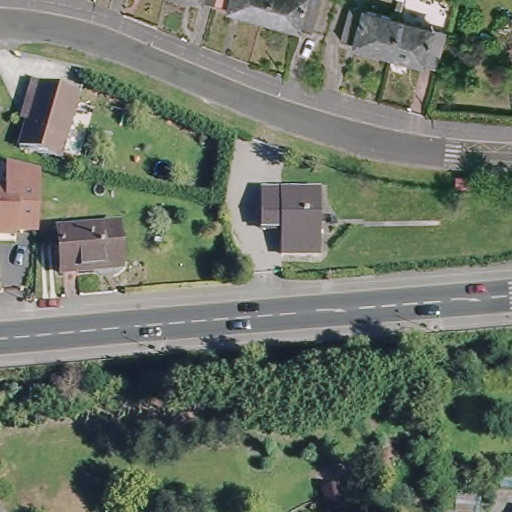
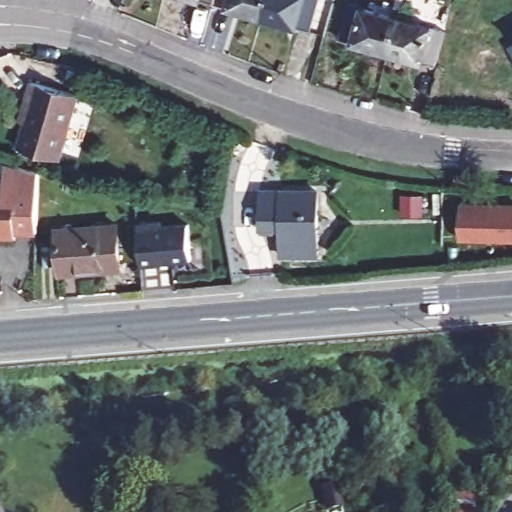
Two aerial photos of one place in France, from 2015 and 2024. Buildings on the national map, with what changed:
unchanged [(205,0),(224,0),(223,5),(205,0)]
unchanged [(223,5),(224,0),(277,0),(275,6),(272,19),(223,5)]
unchanged [(272,19),(275,6),(277,0),(328,0),(319,32),(272,19)]
unchanged [(391,47),(345,33),(353,1),(400,14),(393,42),(391,47)]
unchanged [(391,47),(393,42),(400,14),(450,28),(441,62),(391,47)]
unchanged [(79,94),(65,159),(22,148),(28,123),(22,122),(27,99),(31,82),(79,94)]
unchanged [(18,234),(18,237),(0,239),(0,194),(5,193),(3,167),(36,175),(40,232),(18,234)]
unchanged [(312,238),(314,251),(286,254),(281,191),(317,188),(320,237),(312,238)]
new [(512,203),(512,242),(460,240),(460,202),(512,203)]
new [(138,223),(161,221),(162,226),(189,223),(192,256),(158,260),(159,262),(142,264),(138,223)]
unchanged [(57,272),(53,229),(115,223),(117,260),(118,266),(93,269),(57,272)]
unchanged [(469,489),(467,512),(443,512),(445,485),(469,489)]

